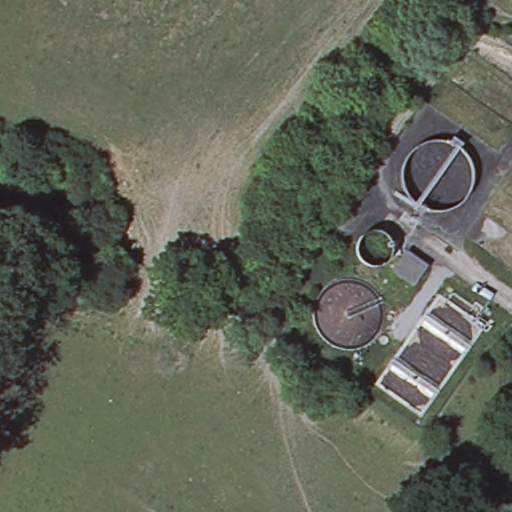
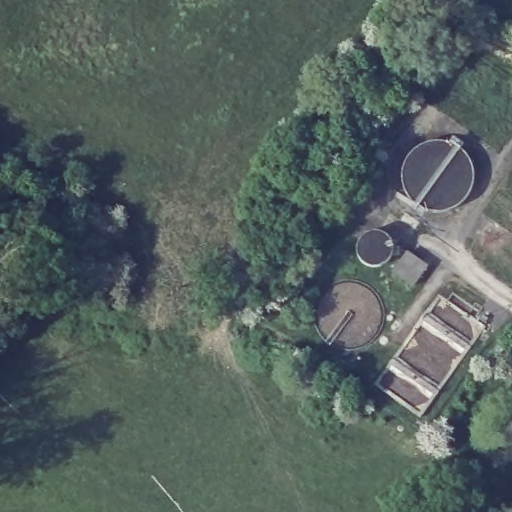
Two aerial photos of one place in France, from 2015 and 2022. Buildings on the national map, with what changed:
unchanged [(392,274),(406,254),(429,269),(414,289),(392,274)]

